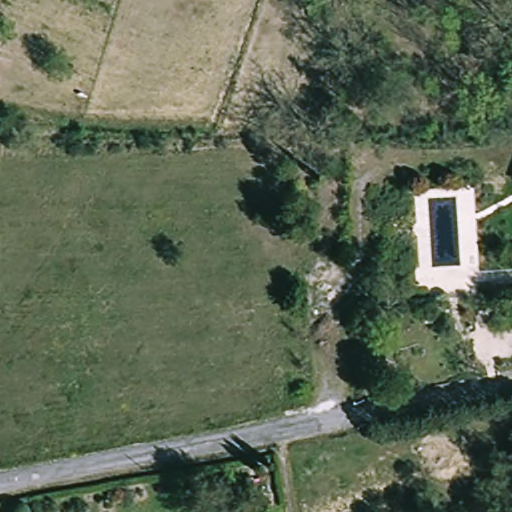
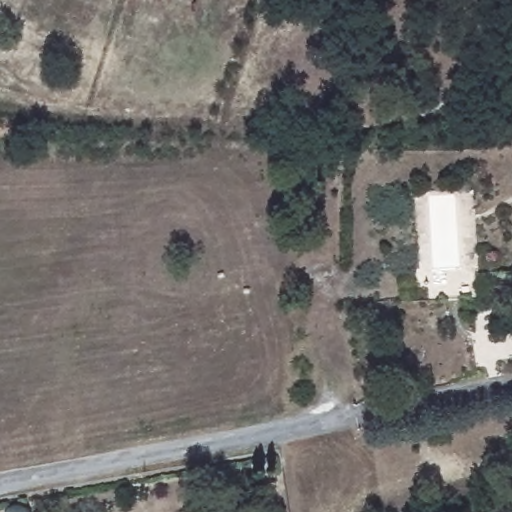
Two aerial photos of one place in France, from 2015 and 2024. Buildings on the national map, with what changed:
unchanged [(490,286),(512,286),(512,298),(490,299),(490,286)]

